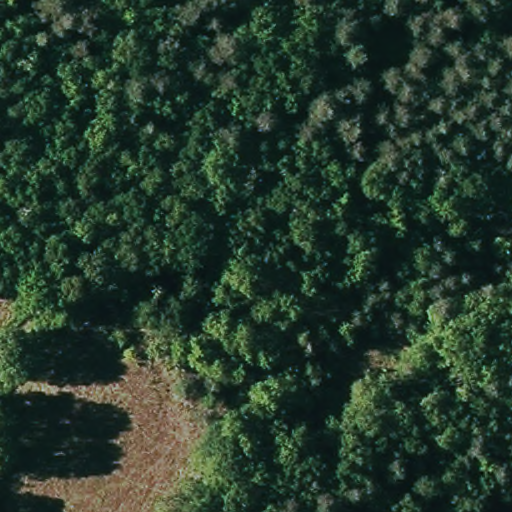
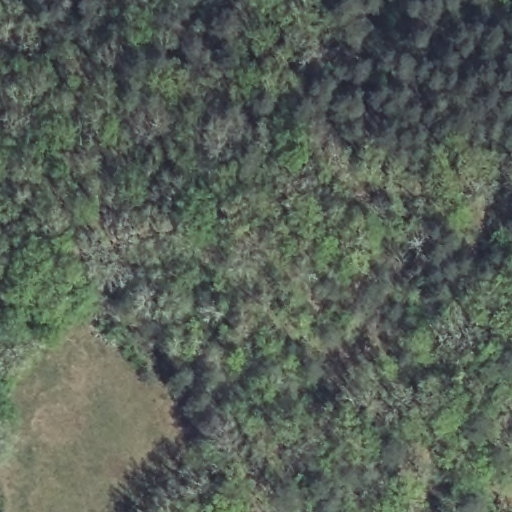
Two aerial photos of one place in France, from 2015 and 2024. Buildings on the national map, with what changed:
unchanged [(40,65),(40,84),(10,84),(10,65),(40,65)]

